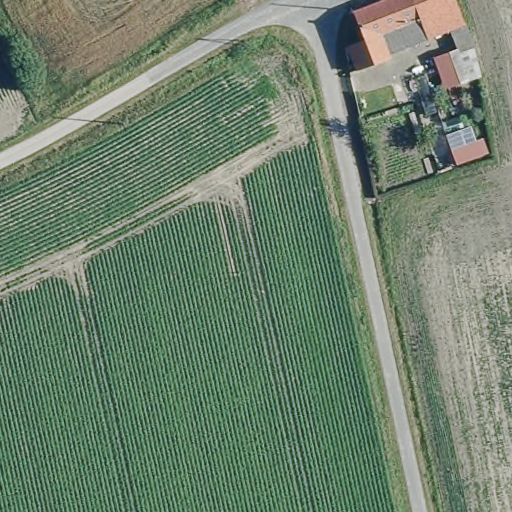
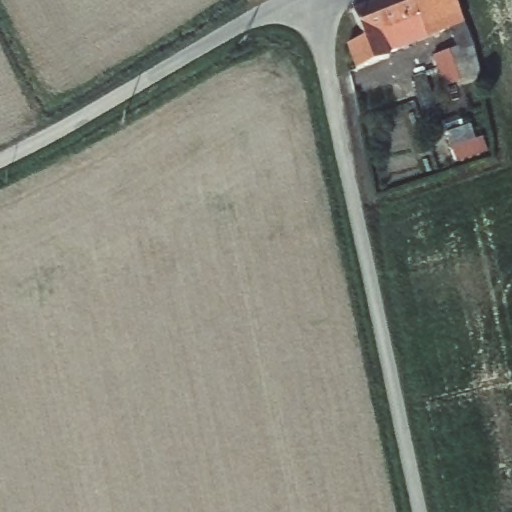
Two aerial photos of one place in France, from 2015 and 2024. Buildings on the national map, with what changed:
unchanged [(377,0),(456,0),(467,34),(472,53),(477,78),(456,83),(452,66),(438,69),(435,53),(457,47),(455,26),(392,46),(395,58),(360,68),(352,41),(368,36),(360,6),(377,0)]

